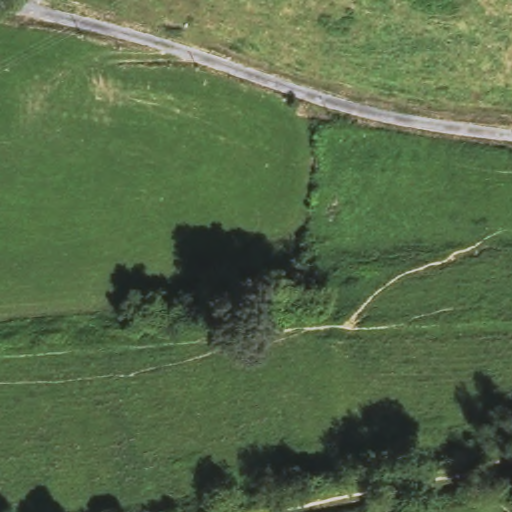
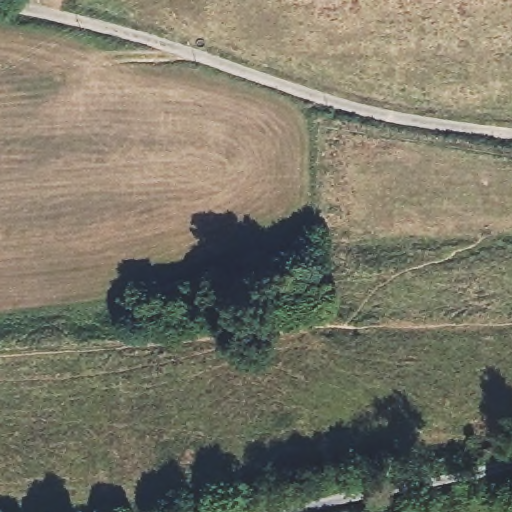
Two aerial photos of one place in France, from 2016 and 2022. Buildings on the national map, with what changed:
[]

